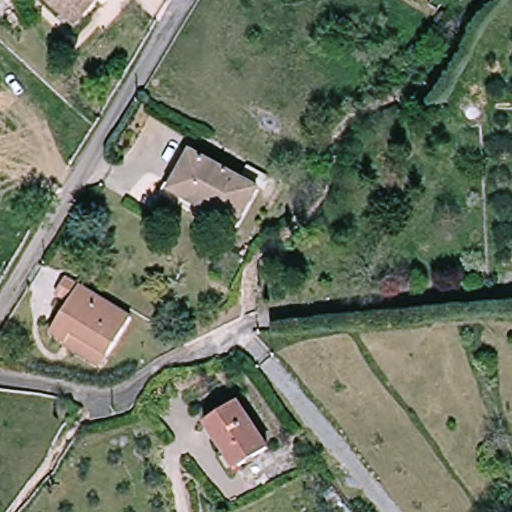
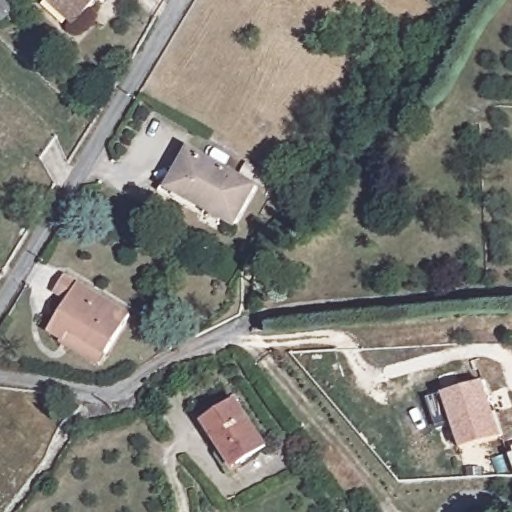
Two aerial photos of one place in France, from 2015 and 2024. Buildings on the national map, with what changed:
unchanged [(52,0),(102,0),(88,14),(78,25),(52,0)]
unchanged [(437,39),(423,59),(412,55),(417,43),(404,37),(409,25),(437,39)]
unchanged [(236,223),(208,206),(204,213),(167,193),(194,149),(257,185),(236,223)]
unchanged [(67,352),(72,343),(59,335),(79,304),(66,295),(76,279),(111,302),(133,316),(107,356),(97,371),(67,352)]
new [(480,379),(496,435),(457,446),(440,390),(480,379)]
unchanged [(226,466),(204,415),(240,400),(263,452),(226,466)]

